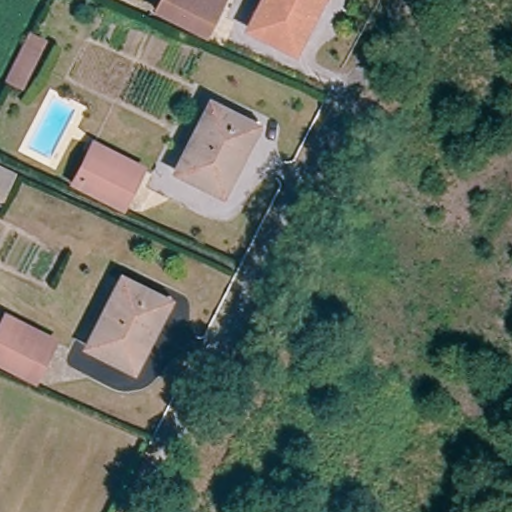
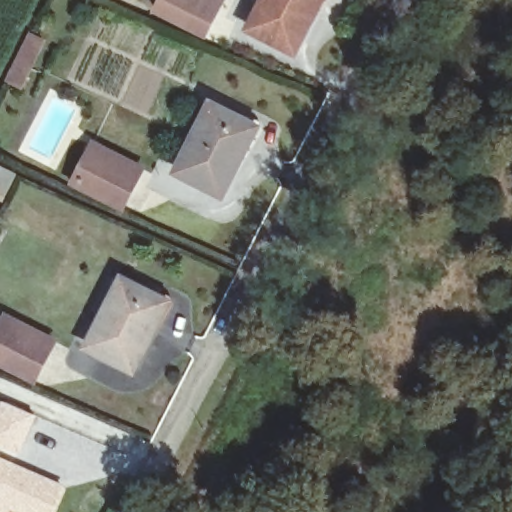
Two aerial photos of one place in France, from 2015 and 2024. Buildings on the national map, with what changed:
unchanged [(159,13),(165,0),(227,0),(223,8),(208,38),(159,13)]
unchanged [(255,29),(270,0),(325,0),(299,51),(255,29)]
unchanged [(46,43),(22,87),(6,78),(30,33),(46,43)]
unchanged [(182,171),(215,106),(242,119),(260,127),(255,137),(225,193),(182,171)]
unchanged [(75,186),(90,158),(95,148),(144,173),(138,183),(124,211),(75,186)]
unchanged [(0,199),(0,164),(19,172),(5,201),(0,199)]
unchanged [(89,347),(122,281),(150,295),(168,303),(162,313),(134,370),(89,347)]
unchanged [(0,362),(0,347),(6,334),(12,321),(59,343),(52,357),(41,382),(0,362)]
new [(1,400),(37,415),(18,455),(0,447),(0,403),(1,400)]
new [(66,486),(54,512),(19,512),(11,508),(9,512),(0,512),(0,457),(66,486)]

